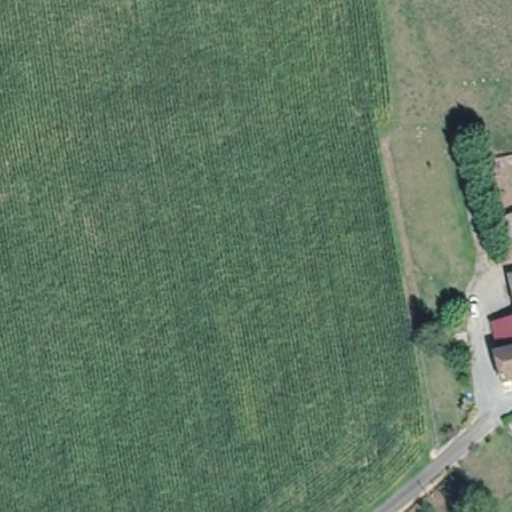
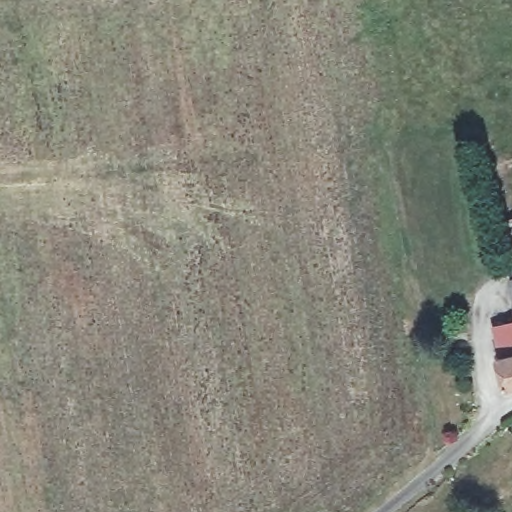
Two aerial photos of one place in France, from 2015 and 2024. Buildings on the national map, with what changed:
unchanged [(505,241),(501,218),(512,215),(512,239),(505,241)]
unchanged [(504,324),(512,322),(512,353),(504,324)]
unchanged [(505,355),(512,353),(512,380),(505,355)]

